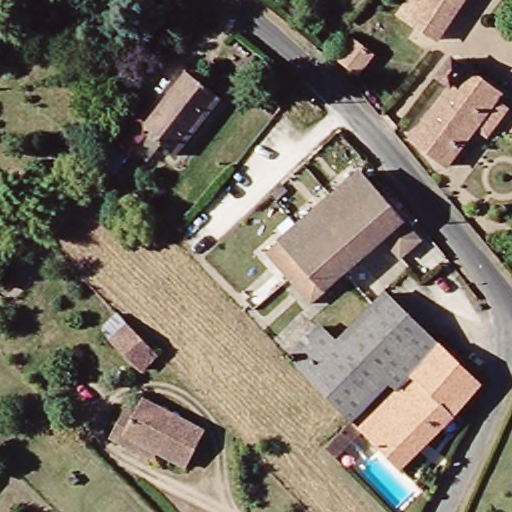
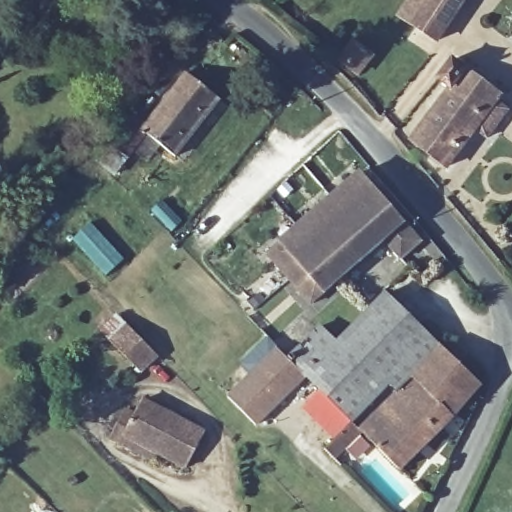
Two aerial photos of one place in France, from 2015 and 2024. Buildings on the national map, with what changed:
unchanged [(462,0),(432,41),(393,12),(401,0),(462,0)]
unchanged [(373,61),(361,77),(342,64),(354,47),(373,61)]
unchanged [(446,160),(410,134),(447,80),(437,72),(450,52),(498,86),(495,91),(505,100),(485,130),(473,121),(446,160)]
unchanged [(174,157),(152,146),(140,162),(128,152),(114,169),(94,156),(120,120),(136,131),(181,72),(219,99),(174,157)]
unchanged [(402,261),(383,242),(318,307),(271,261),(360,172),(420,243),(402,261)]
unchanged [(332,407),(308,386),(298,377),(281,360),(307,332),(310,329),(327,345),(330,342),(377,293),(387,303),(410,325),(332,407)]
unchanged [(132,367),(102,337),(119,319),(150,349),(132,367)]
unchanged [(318,455),(347,423),(332,407),(410,325),(413,322),(435,343),(474,382),(443,422),(400,472),(360,434),(330,465),(318,455)]
new [(298,377),(302,381),(257,426),(228,394),(272,352),(281,360),(298,377)]
unchanged [(107,440),(124,409),(131,413),(140,398),(203,432),(184,467),(154,451),(147,461),(107,440)]

